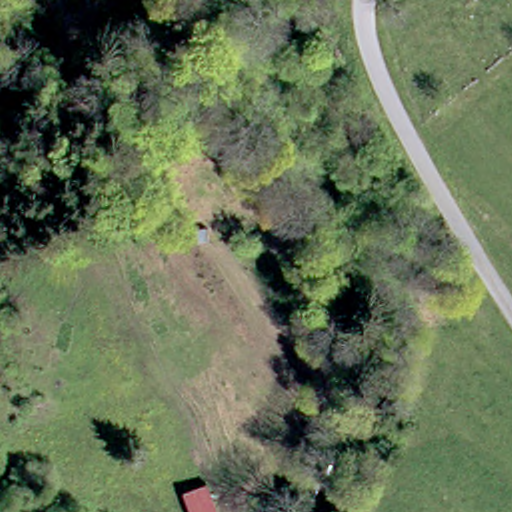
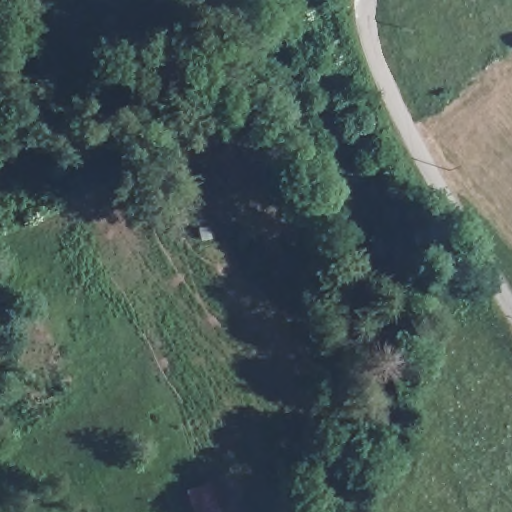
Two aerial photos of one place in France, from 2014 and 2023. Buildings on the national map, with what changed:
unchanged [(218,512),(192,512),(186,492),(208,485),(218,512)]

